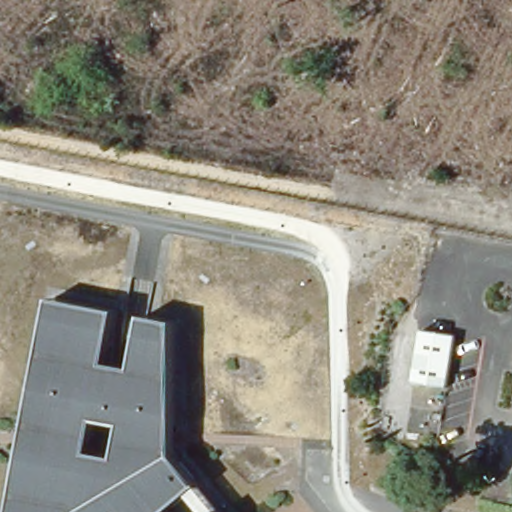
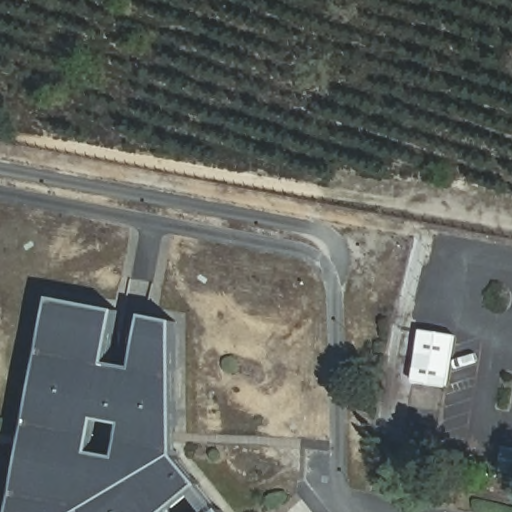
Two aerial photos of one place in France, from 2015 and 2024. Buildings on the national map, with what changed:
unchanged [(112,363),(139,368),(149,317),(177,322),(177,457),(202,486),(171,512),(14,512),(55,298),(122,312),(112,363)]
unchanged [(459,335),(450,388),(414,382),(423,330),(459,335)]
unchanged [(225,512),(221,512),(223,510),(225,512)]

